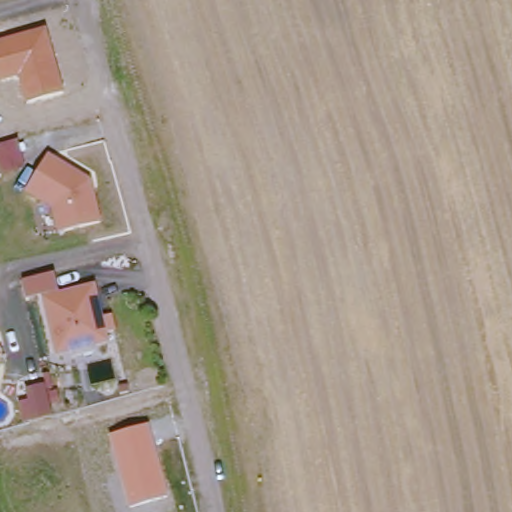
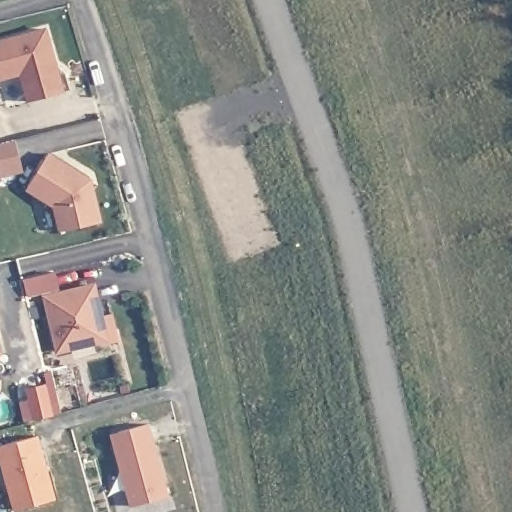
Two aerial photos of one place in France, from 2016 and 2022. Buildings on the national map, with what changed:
unchanged [(24,106),(18,78),(0,83),(0,42),(44,30),(62,96),(24,106)]
unchanged [(0,165),(0,145),(20,140),(28,168),(3,174),(0,165)]
unchanged [(59,233),(53,207),(28,193),(49,154),(93,181),(103,224),(59,233)]
unchanged [(104,315),(114,314),(118,330),(109,332),(111,341),(56,354),(43,294),(29,297),(24,281),(56,274),(60,291),(98,284),(104,315)]
unchanged [(108,436),(147,425),(167,497),(126,508),(108,436)]
new [(13,509),(0,463),(0,446),(38,436),(55,498),(13,509)]

